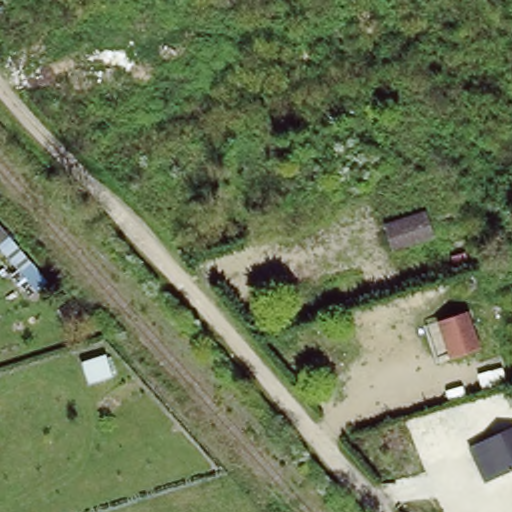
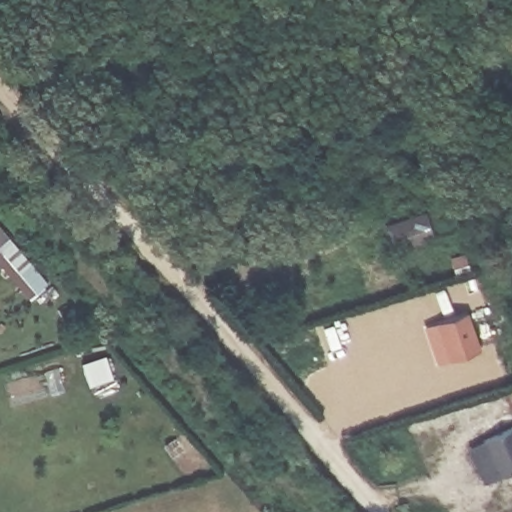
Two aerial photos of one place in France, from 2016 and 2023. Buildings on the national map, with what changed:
unchanged [(426,209),(435,236),(393,251),(384,222),(426,209)]
unchanged [(469,310),(481,347),(449,358),(438,362),(425,324),(436,320),(469,310)]
unchanged [(106,358),(113,377),(88,385),(83,365),(106,358)]
unchanged [(483,481),(468,445),(482,439),(512,426),(512,468),(498,474),(483,481)]

